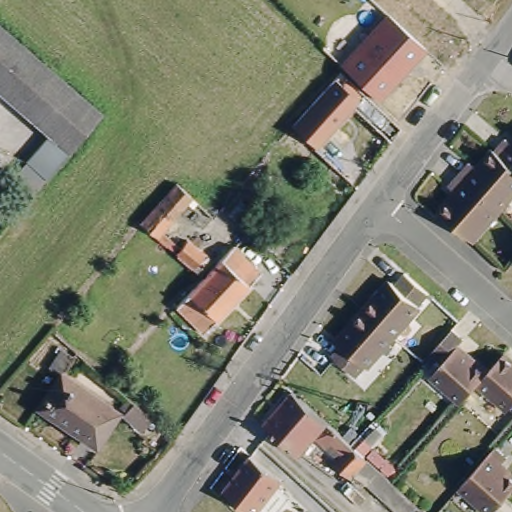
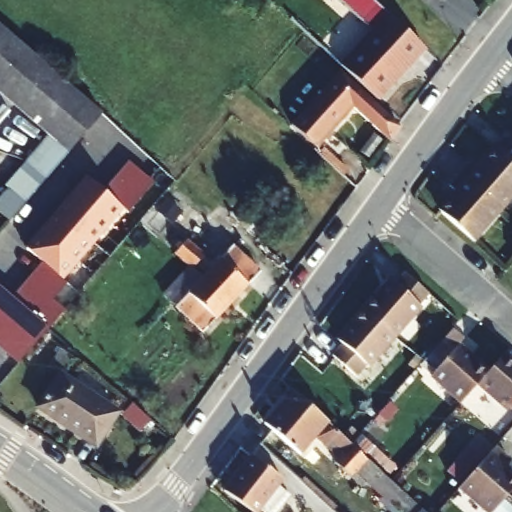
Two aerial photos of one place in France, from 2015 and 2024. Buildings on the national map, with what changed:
unchanged [(424,53),(377,104),(343,73),(341,71),(340,70),(387,19),(424,53)]
unchanged [(0,98),(0,32),(102,119),(70,157),(50,141),(0,98)]
unchanged [(399,132),(391,140),(355,108),(315,152),(291,130),(340,77),(399,132)]
unchanged [(50,141),(70,157),(13,222),(0,213),(0,198),(50,141)]
unchanged [(505,143),(512,150),(512,171),(495,155),(505,143)]
unchanged [(469,167),(477,174),(495,155),(512,171),(512,198),(498,213),(459,178),(469,167)]
new [(87,177),(104,192),(130,162),(153,182),(127,213),(121,207),(90,242),(56,213),(87,177)]
unchanged [(440,217),(457,198),(448,190),(459,178),(498,213),(471,244),(440,217)]
demolished [(200,259),(189,269),(196,276),(192,279),(136,229),(171,188),(195,210),(190,215),(182,208),(156,236),(175,252),(181,244),(200,259)]
unchanged [(252,210),(273,231),(260,243),(240,222),(252,210)]
new [(43,263),(26,248),(56,213),(90,242),(58,276),(67,283),(36,318),(13,298),(43,263)]
unchanged [(227,251),(255,277),(197,338),(170,312),(227,251)]
unchanged [(395,289),(405,278),(428,299),(392,340),(365,316),(391,286),(395,289)]
new [(0,345),(0,287),(36,318),(52,300),(64,310),(20,362),(0,345)]
unchanged [(392,340),(356,381),(332,360),(342,349),(338,346),(365,316),(392,340)]
unchanged [(483,377),(467,396),(437,369),(447,358),(436,348),(457,324),(468,334),(461,342),(491,368),(483,377)]
unchanged [(491,368),(508,350),(512,354),(512,403),(483,377),(491,368)]
unchanged [(55,353),(66,361),(54,379),(42,372),(55,353)]
unchanged [(32,412),(54,379),(111,417),(90,450),(32,412)]
unchanged [(346,445),(386,481),(405,500),(418,512),(393,512),(362,482),(357,486),(330,463),(333,458),(310,437),(295,454),(259,423),(287,391),(345,444),(346,445)]
unchanged [(116,421),(120,417),(113,412),(121,403),(127,409),(145,425),(135,438),(116,421)]
unchanged [(502,462),(495,470),(512,486),(512,490),(504,499),(492,512),(479,512),(455,491),(490,452),(502,462)]
unchanged [(277,485),(290,495),(278,512),(251,512),(223,491),(250,455),(282,479),(277,485)]

